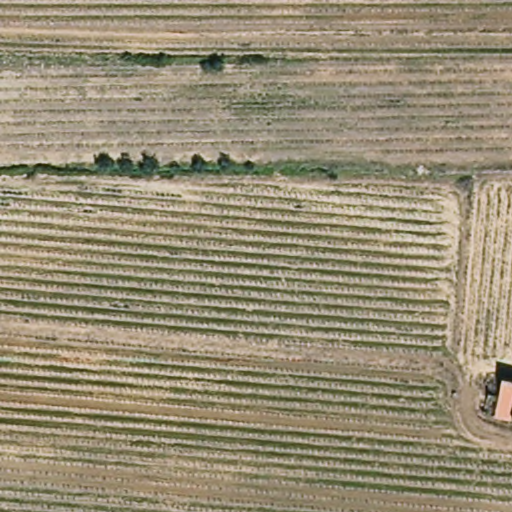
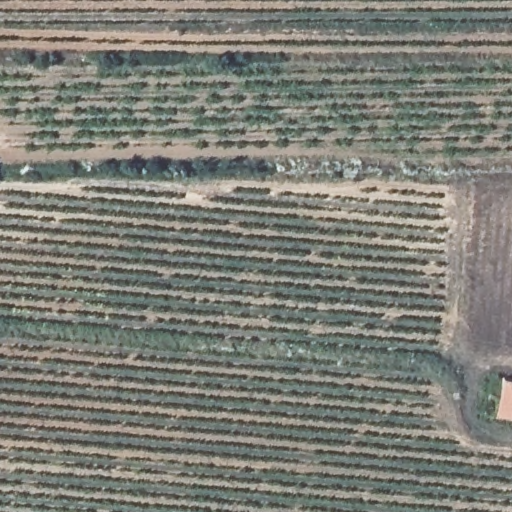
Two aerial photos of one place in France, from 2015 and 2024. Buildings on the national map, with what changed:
unchanged [(512,377),(512,416),(495,413),(502,376),(512,377)]

